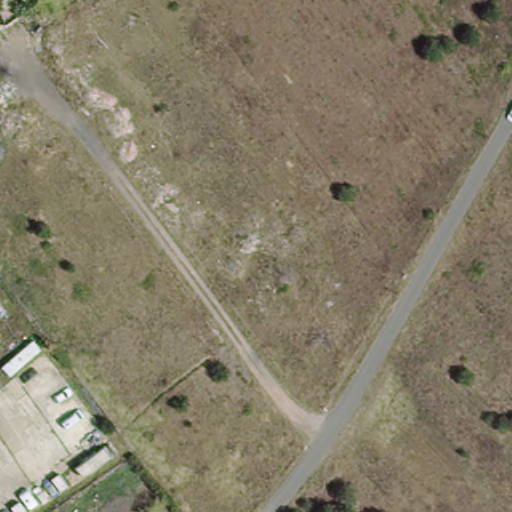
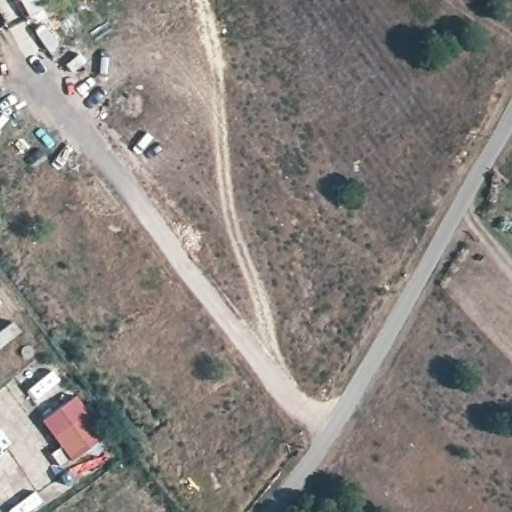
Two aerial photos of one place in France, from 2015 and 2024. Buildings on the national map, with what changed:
new [(105,434),(71,459),(43,420),(77,396),(105,434)]

